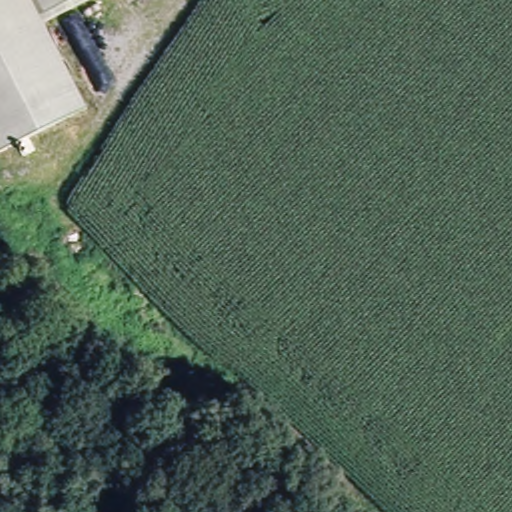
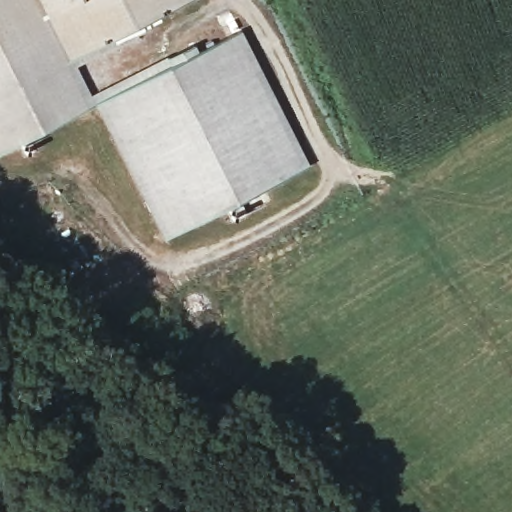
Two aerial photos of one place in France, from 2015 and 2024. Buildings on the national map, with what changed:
demolished [(88,106),(0,152),(0,0),(39,0),(47,21),(88,106)]
new [(157,243),(90,109),(88,106),(0,152),(0,0),(39,0),(47,21),(86,101),(188,50),(192,57),(235,36),(302,171),(157,243)]
unchanged [(39,0),(87,0),(47,21),(39,0)]
new [(47,21),(87,0),(195,0),(70,68),(47,21)]

